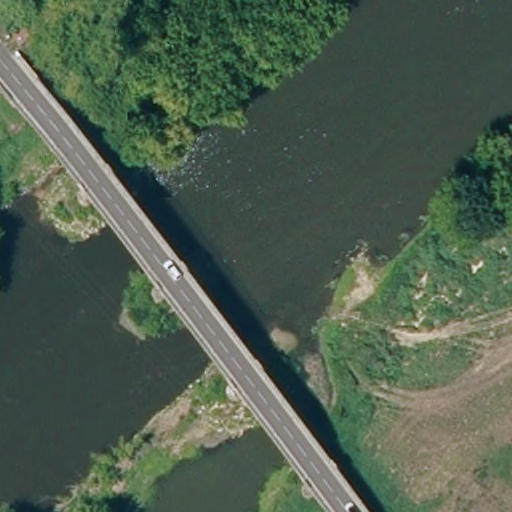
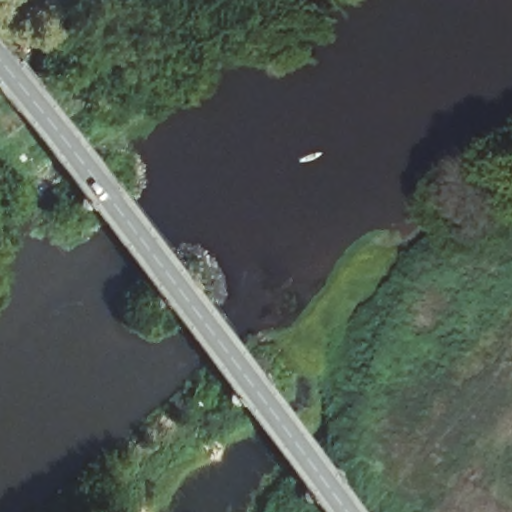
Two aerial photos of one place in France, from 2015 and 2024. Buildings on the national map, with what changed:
unchanged [(29,34),(34,43),(20,51),(15,41),(29,34)]

